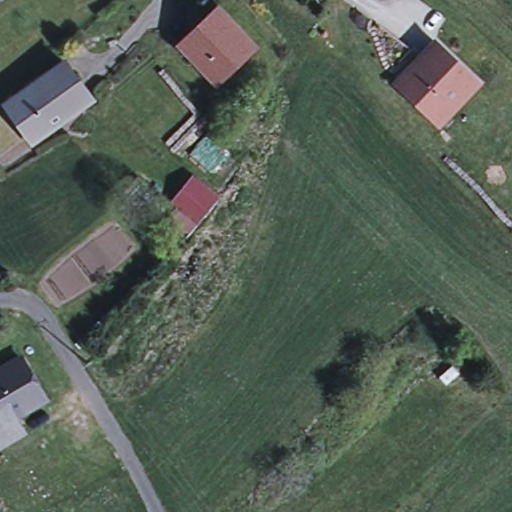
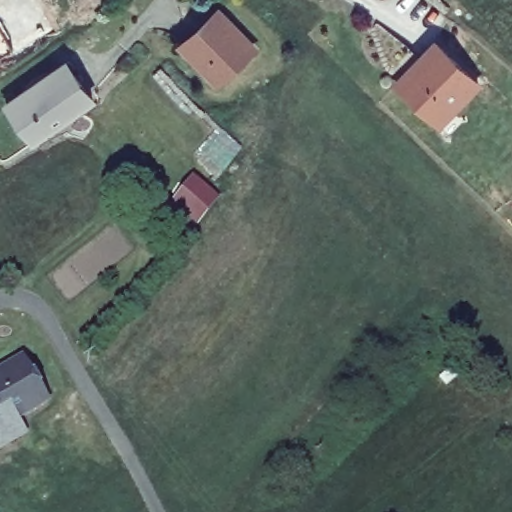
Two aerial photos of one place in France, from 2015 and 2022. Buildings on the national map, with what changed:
unchanged [(216,83),(181,45),(195,33),(217,11),(221,15),(253,49),(216,83)]
unchanged [(437,125),(426,114),(396,86),(400,81),(406,75),(407,74),(420,61),(435,44),(471,78),(477,84),(449,112),(441,121),(437,125)]
unchanged [(91,100),(32,141),(6,105),(65,63),(91,100)]
unchanged [(0,446),(0,370),(21,358),(46,399),(15,418),(23,433),(0,446)]

